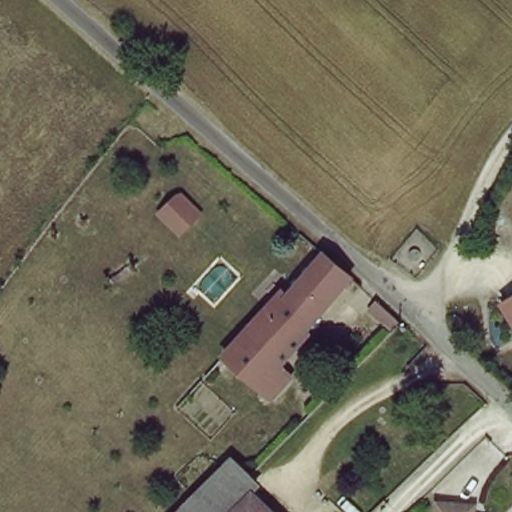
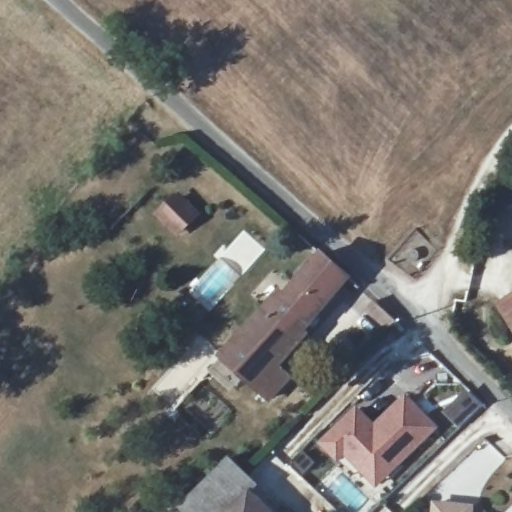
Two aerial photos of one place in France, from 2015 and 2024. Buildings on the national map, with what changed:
unchanged [(179,237),(158,218),(183,193),(204,214),(179,237)]
unchanged [(243,340),(321,259),(339,275),(350,285),(271,366),(243,340)]
unchanged [(503,308),(512,302),(512,323),(503,308)]
unchanged [(286,379),(266,397),(225,359),(243,340),(271,366),(286,379)]
new [(358,405),(375,424),(406,393),(438,428),(376,489),(345,456),(338,464),(319,444),(358,405)]
unchanged [(190,491),(234,456),(253,477),(262,490),(256,496),(235,512),(192,512),(181,499),(190,491)]
unchanged [(270,512),(235,512),(256,496),(270,512)]
unchanged [(472,506),(472,512),(437,512),(438,505),(472,506)]

